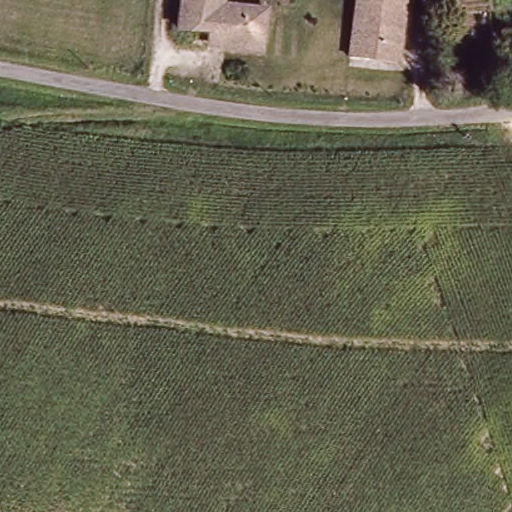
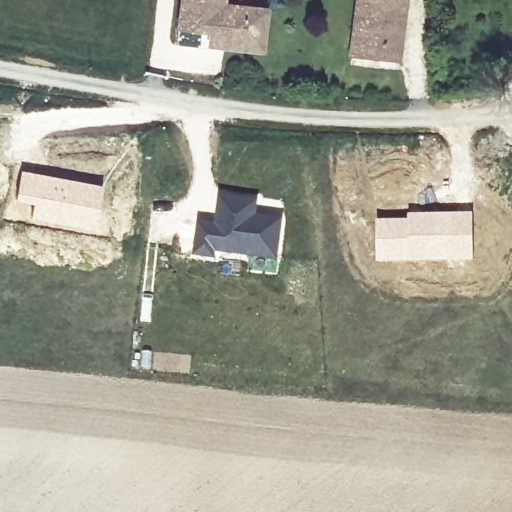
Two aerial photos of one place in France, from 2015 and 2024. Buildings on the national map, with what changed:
unchanged [(182,26),(185,0),(227,0),(226,1),(269,5),(266,45),(229,41),(229,46),(211,44),(213,29),(182,26)]
unchanged [(373,60),(355,58),(357,28),(360,0),(406,0),(406,2),(409,4),(405,47),(403,62),(373,60)]
new [(21,169),(103,185),(94,232),(29,218),(32,204),(15,200),(21,169)]
new [(196,219),(213,221),(219,189),(258,197),(256,213),(283,215),(277,260),(217,253),(217,258),(192,254),(196,219)]
new [(375,218),(407,217),(407,212),(473,211),(473,260),(375,262),(375,218)]

